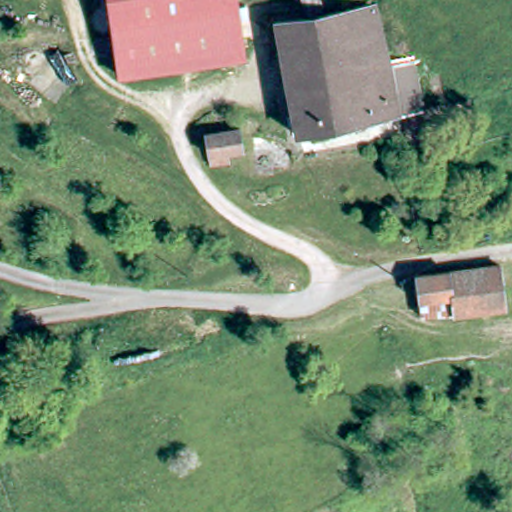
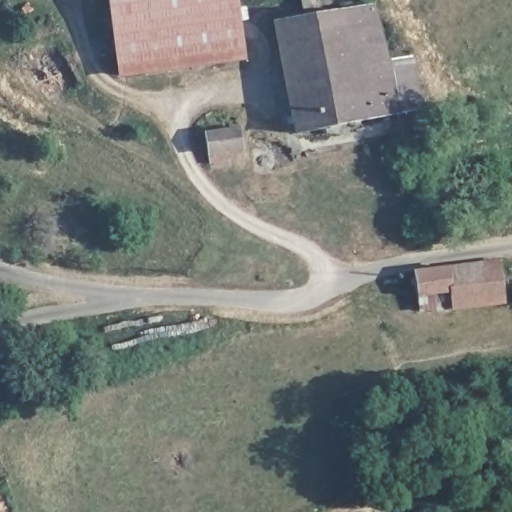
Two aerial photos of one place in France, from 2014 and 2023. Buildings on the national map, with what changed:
unchanged [(251,27),(243,28),(248,62),(124,84),(111,9),(110,0),(238,0),(240,10),(249,8),(251,27)]
unchanged [(396,60),(415,56),(426,108),(300,134),(278,24),(374,4),(382,49),(396,60)]
unchanged [(247,154),(235,155),(235,166),(213,166),(212,133),(246,132),(247,154)]
unchanged [(421,300),(419,274),(505,262),(508,310),(457,312),(423,314),(421,300)]

